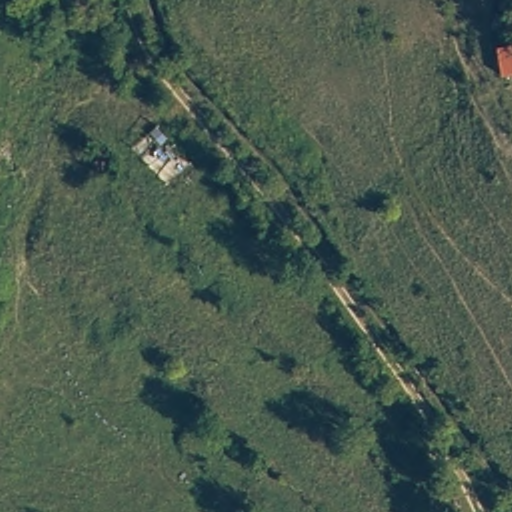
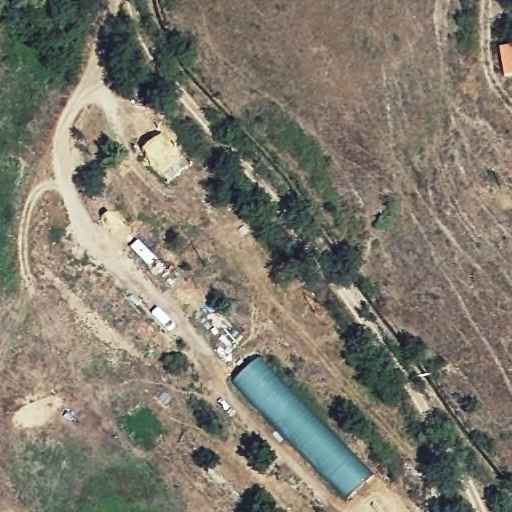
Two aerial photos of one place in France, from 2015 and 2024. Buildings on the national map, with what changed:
unchanged [(512,72),(503,74),(494,44),(512,41),(512,72)]
new [(374,473),(346,502),(232,384),(259,357),(374,473)]

